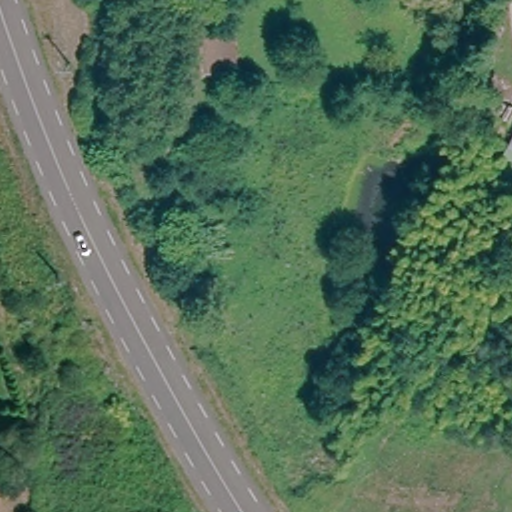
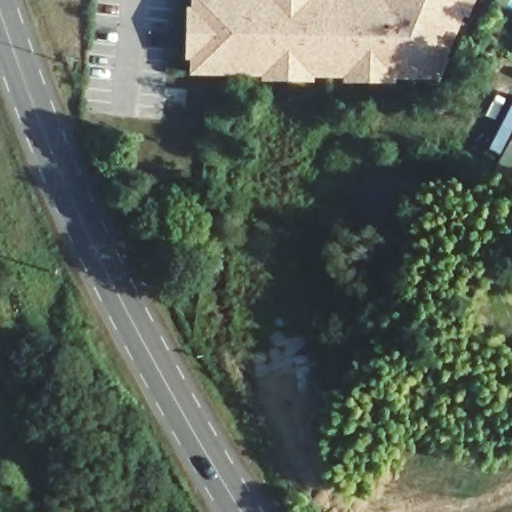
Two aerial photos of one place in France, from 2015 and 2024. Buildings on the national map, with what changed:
new [(469,20),(465,19),(438,82),(396,81),(396,87),(346,86),(346,81),(314,80),(314,85),(270,85),(270,79),(190,78),(190,62),(186,62),(187,9),(192,10),(192,0),(477,0),(469,20)]
unchanged [(497,77),(512,85),(512,121),(511,124),(481,109),(497,77)]
unchanged [(492,184),(512,146),(512,194),(492,184)]

